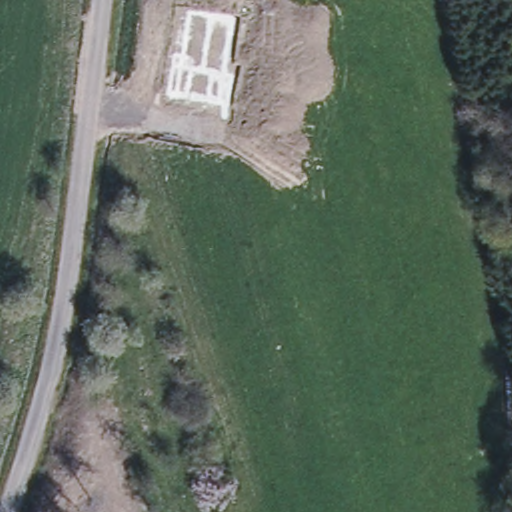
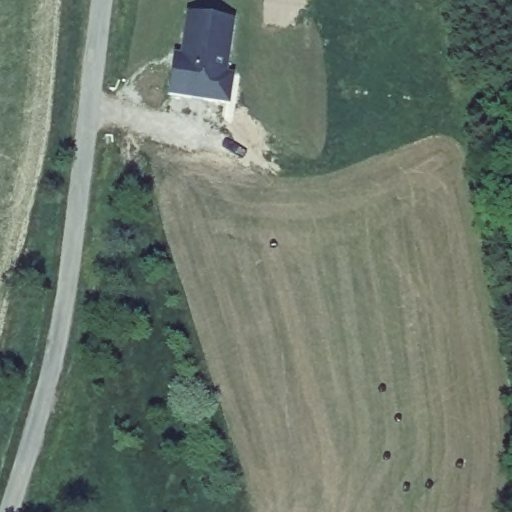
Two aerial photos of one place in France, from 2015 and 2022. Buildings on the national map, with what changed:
new [(228,74),(235,74),(230,105),(168,97),(174,53),(181,54),(187,11),(235,19),(228,74)]

